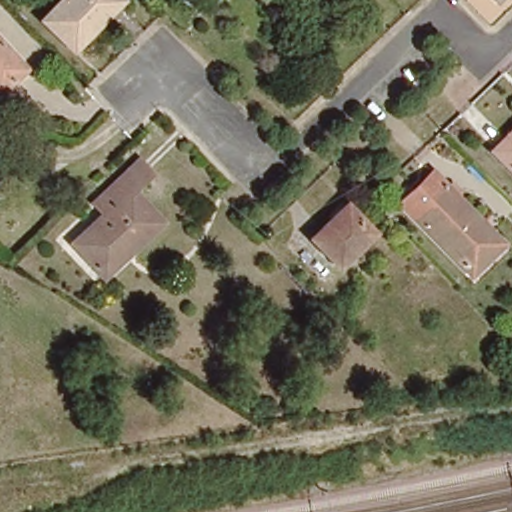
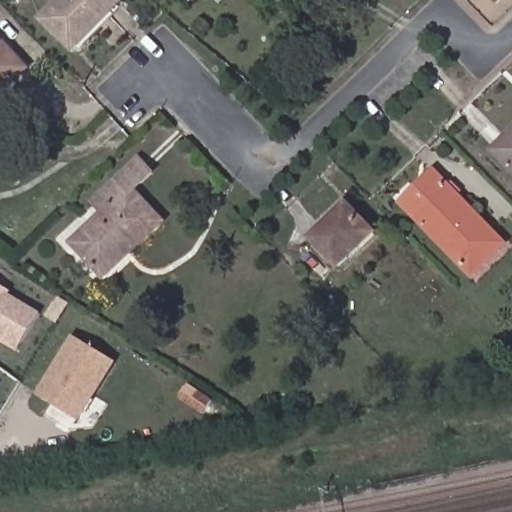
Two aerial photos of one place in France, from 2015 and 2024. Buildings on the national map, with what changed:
unchanged [(97,17),(102,22),(77,47),(44,17),(62,0),(117,0),(97,17)]
unchanged [(0,89),(0,36),(27,63),(0,89)]
unchanged [(512,168),(496,152),(512,136),(512,168)]
unchanged [(151,177),(137,188),(166,219),(105,277),(72,243),(104,218),(94,206),(140,165),(151,177)]
unchanged [(485,222),(480,226),(500,246),(474,273),(405,205),(400,201),(413,188),(432,170),(485,222)]
unchanged [(340,262),(312,233),(346,201),(373,230),(340,262)]
new [(7,289),(5,292),(37,312),(15,350),(0,342),(0,285),(7,289)]
new [(111,360),(76,417),(36,392),(70,335),(111,360)]

